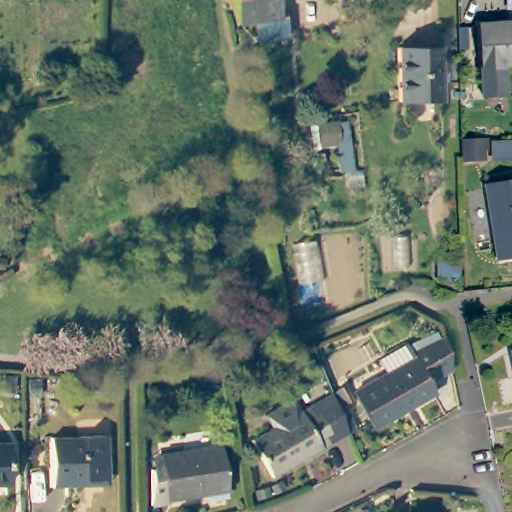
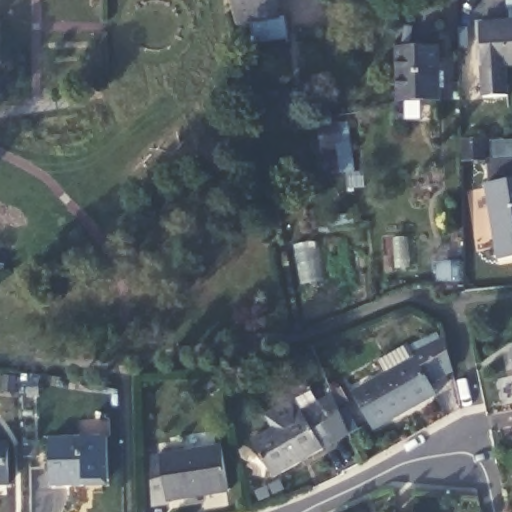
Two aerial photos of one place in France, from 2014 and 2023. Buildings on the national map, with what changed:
unchanged [(288,34),(259,39),(256,22),(238,25),(234,0),(276,0),(278,10),(284,9),(285,15),(288,34)]
unchanged [(512,87),(512,96),(488,97),(485,25),(512,24),(512,67),(511,67),(512,87)]
unchanged [(402,55),(444,55),(446,105),(404,106),(402,55)]
unchanged [(347,142),(320,146),(318,127),(346,123),(347,142)]
unchanged [(512,159),(492,160),(491,144),(512,144),(512,159)]
unchanged [(512,180),(512,259),(497,261),(485,185),(512,180)]
unchanged [(5,244),(6,235),(11,209),(22,210),(17,236),(16,246),(5,244)]
unchanged [(0,270),(0,260),(3,260),(2,270),(0,270)]
unchanged [(433,395),(374,429),(353,393),(413,359),(412,355),(445,336),(452,369),(427,382),(433,395)]
unchanged [(512,350),(512,360),(510,350),(512,350)]
unchanged [(322,448),(272,477),(251,441),(272,429),(265,416),(293,400),(300,413),(302,412),(303,415),(316,408),(333,398),(347,431),(334,439),(321,446),(322,448)]
unchanged [(107,480),(83,481),(83,486),(51,486),(49,438),(106,436),(107,480)]
unchanged [(7,485),(0,485),(0,445),(7,445),(7,485)]
unchanged [(227,492),(167,501),(167,503),(152,505),(151,468),(151,456),(160,455),(221,447),(227,492)]

